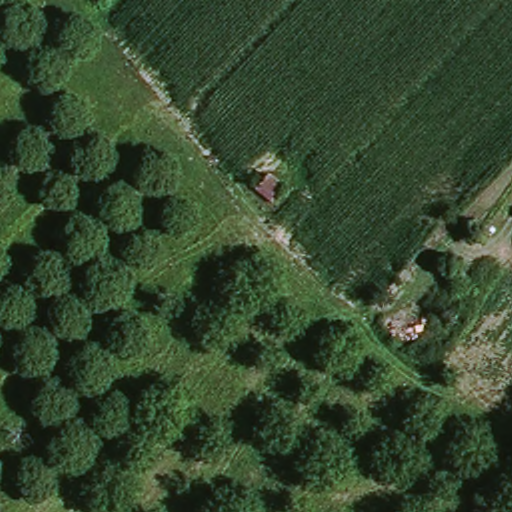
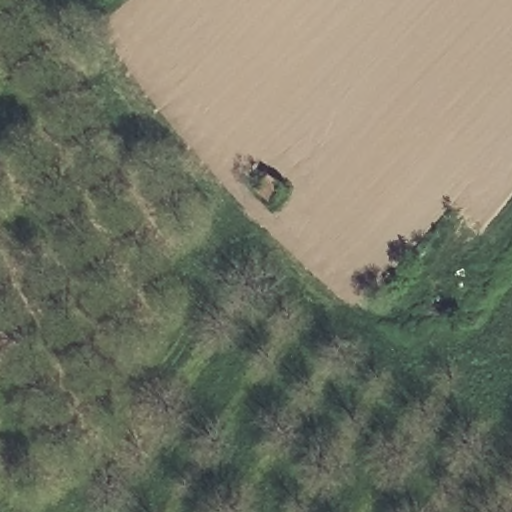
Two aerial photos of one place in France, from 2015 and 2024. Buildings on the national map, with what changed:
unchanged [(253,193),(267,173),(285,185),(271,207),(253,193)]

